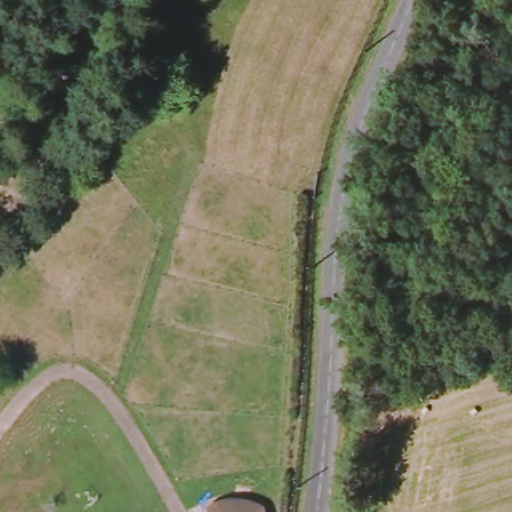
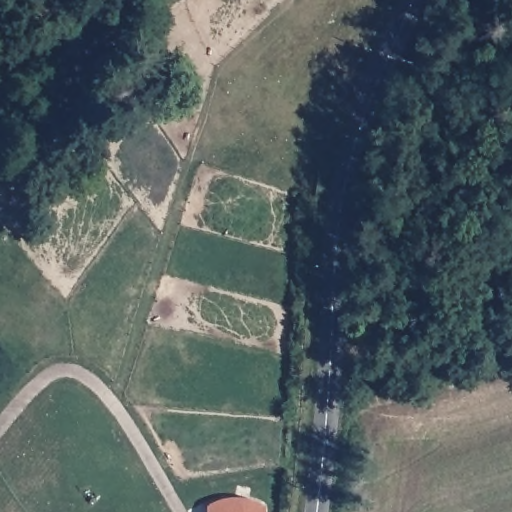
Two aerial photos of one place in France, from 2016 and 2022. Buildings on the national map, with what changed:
unchanged [(223,497),(233,496),(248,500),(261,503),(261,512),(205,512),(205,504),(223,497)]

